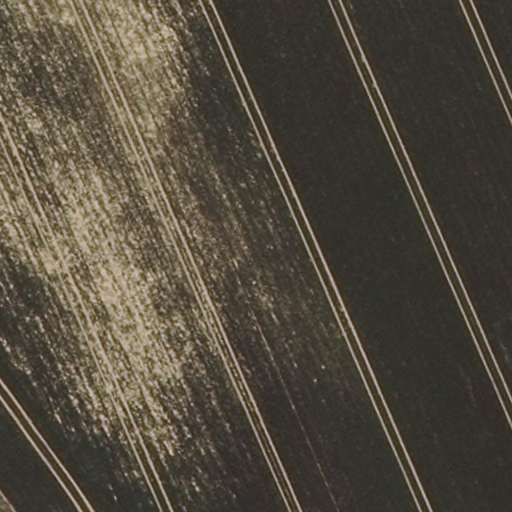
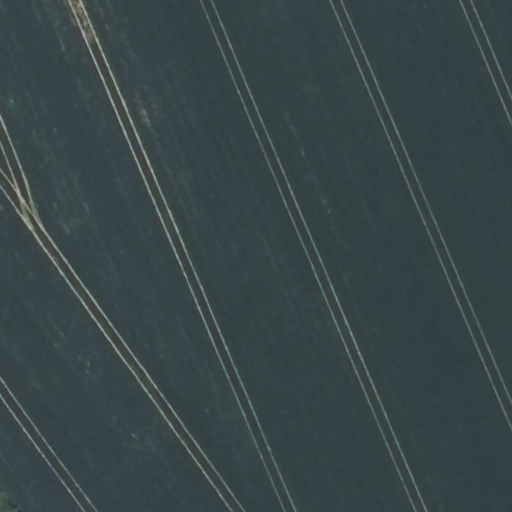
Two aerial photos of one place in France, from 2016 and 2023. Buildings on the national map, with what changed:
[]

